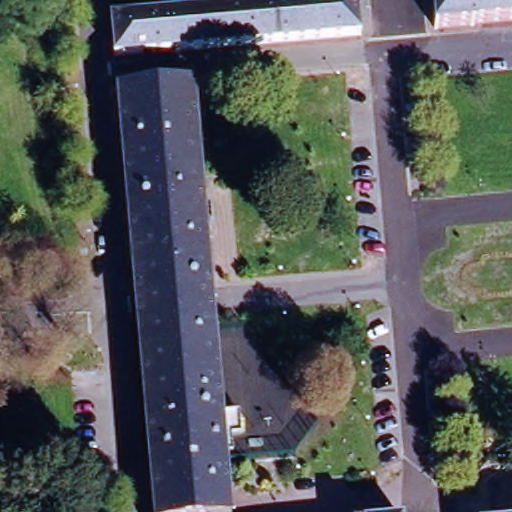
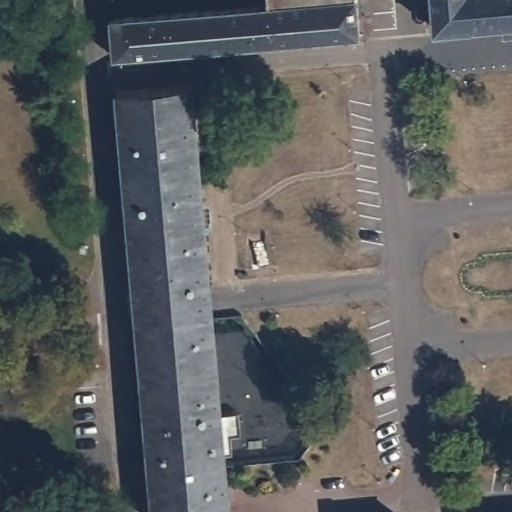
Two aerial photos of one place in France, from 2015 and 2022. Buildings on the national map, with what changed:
unchanged [(270,7),(270,0),(358,0),(362,39),(115,59),(112,19),(270,7)]
unchanged [(470,29),(466,29),(433,31),(433,32),(430,33),(430,29),(430,28),(428,0),(512,0),(512,24),(470,28),(470,29)]
unchanged [(118,94),(195,86),(210,289),(135,297),(118,94)]
unchanged [(210,289),(213,316),(137,324),(135,297),(210,289)]
unchanged [(213,316),(229,512),(153,512),(137,324),(213,316)]

